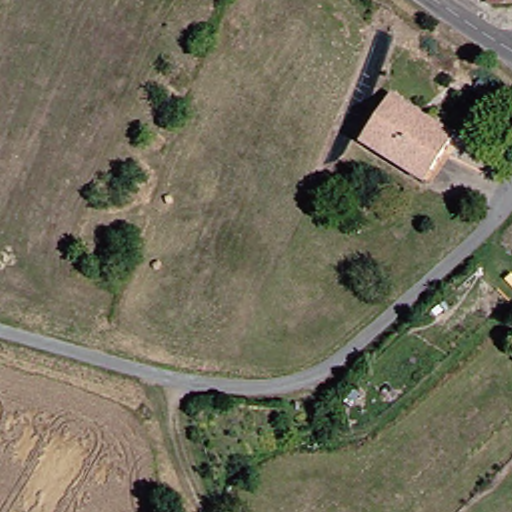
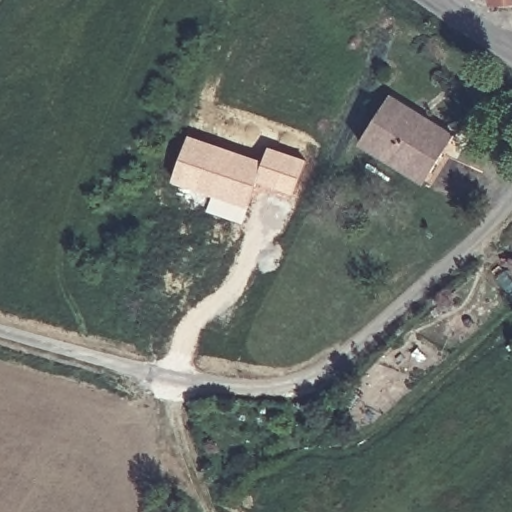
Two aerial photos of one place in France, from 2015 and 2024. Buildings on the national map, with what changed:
unchanged [(494,0),(512,0),(512,2),(494,2),(494,0)]
unchanged [(380,146),(368,137),(399,92),(407,97),(462,135),(431,180),(380,146)]
new [(293,195),(259,182),(249,207),(173,181),(189,134),(263,162),(267,147),(306,160),(293,195)]

